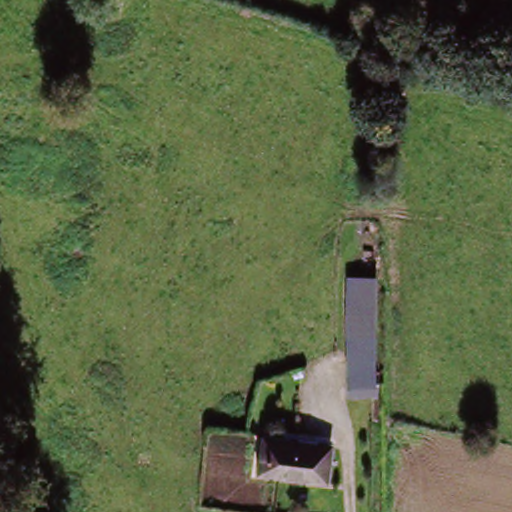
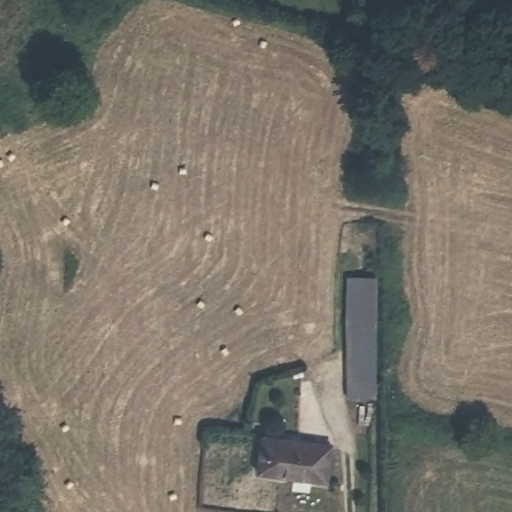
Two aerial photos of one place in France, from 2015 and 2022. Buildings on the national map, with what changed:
unchanged [(341,388),(345,280),(377,278),(378,392),(341,388)]
unchanged [(323,483),(257,472),(263,439),(328,450),(323,483)]

